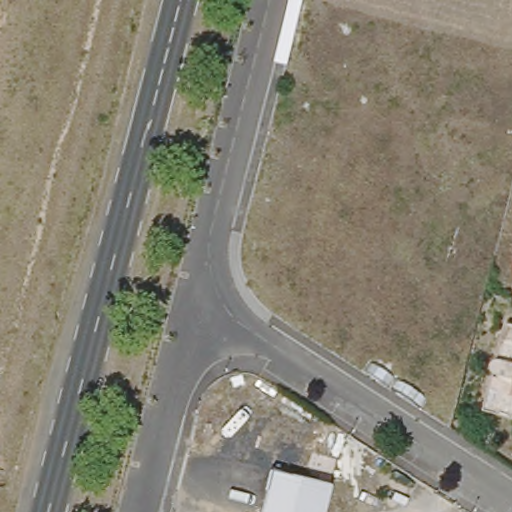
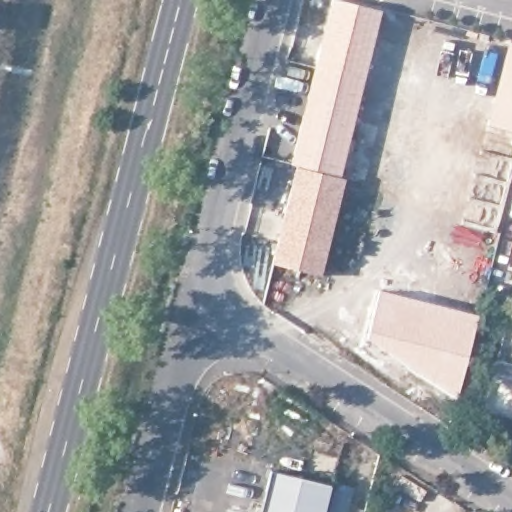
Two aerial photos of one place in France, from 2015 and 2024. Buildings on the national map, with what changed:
new [(339,0),(382,10),(365,79),(315,68),(332,0),(339,0)]
new [(512,44),(512,133),(489,126),(509,44),(512,44)]
new [(315,68),(365,79),(342,176),(292,165),(315,68)]
new [(342,176),(347,177),(322,275),(273,263),(296,166),(342,176)]
new [(378,288),(479,315),(455,397),(426,381),(363,340),(378,288)]
unchanged [(501,328),(512,330),(512,420),(481,412),(501,328)]
unchanged [(324,493),(319,512),(256,512),(264,478),(324,493)]

